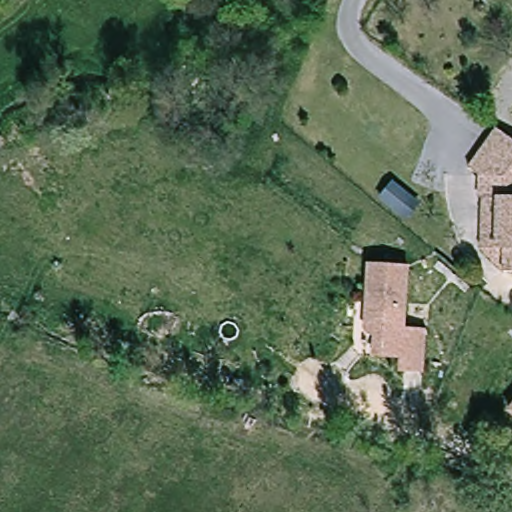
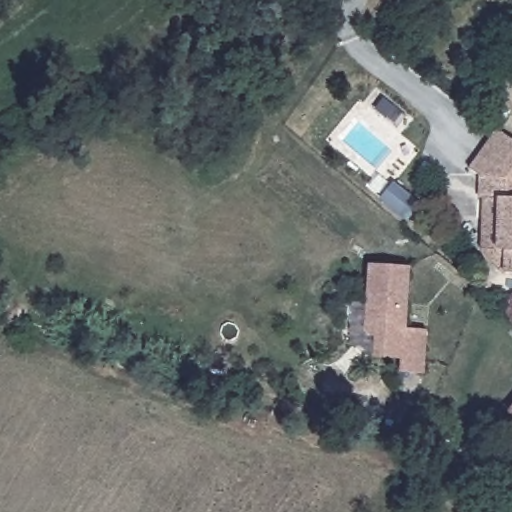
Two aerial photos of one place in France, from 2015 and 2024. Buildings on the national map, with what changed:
unchanged [(478,199),(479,176),(470,169),(498,129),(512,139),(512,272),(503,272),(482,248),(483,199),(478,199)]
unchanged [(397,181),(424,202),(413,223),(381,197),(397,181)]
unchanged [(411,269),(406,332),(427,334),(424,377),(402,374),(403,361),(375,359),(377,338),(371,337),(366,332),(369,303),(371,265),(411,269)]

